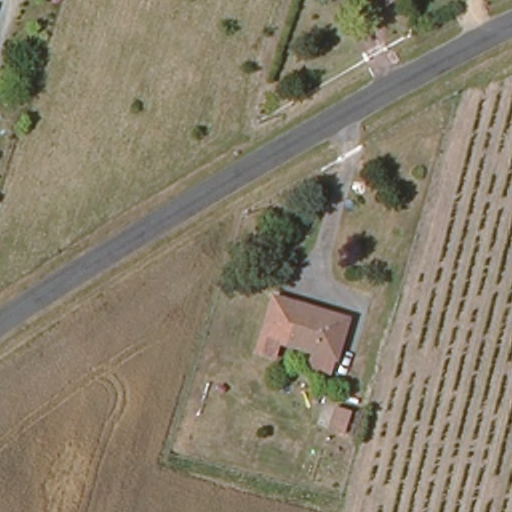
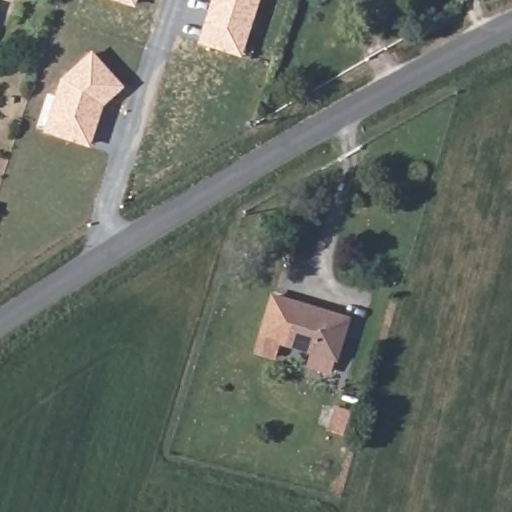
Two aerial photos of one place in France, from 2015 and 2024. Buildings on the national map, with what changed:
new [(135,7),(111,0),(137,0),(135,7)]
new [(241,57),(198,44),(211,0),(259,0),(241,57)]
new [(104,105),(90,147),(43,132),(60,79),(91,51),(124,86),(104,105)]
unchanged [(348,316),(336,356),(334,355),(330,370),(310,363),(314,349),(281,339),(274,357),(253,351),(272,294),(348,316)]
unchanged [(328,434),(335,412),(351,417),(345,439),(328,434)]

